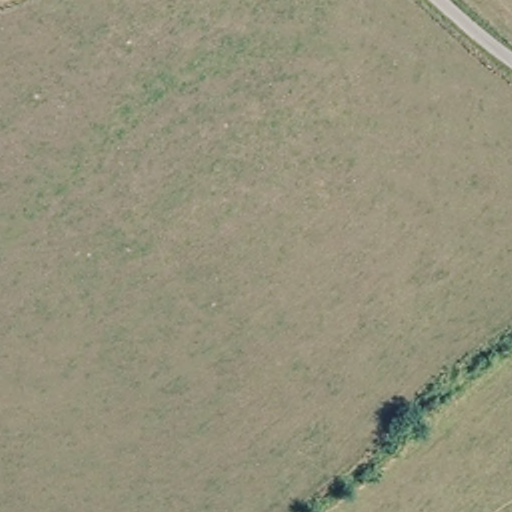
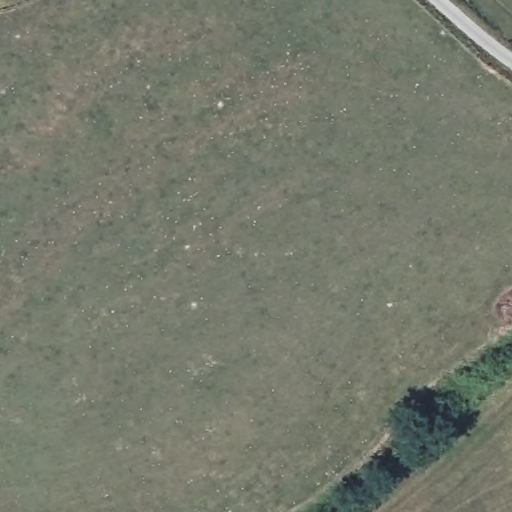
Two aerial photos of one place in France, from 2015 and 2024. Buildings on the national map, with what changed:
[]

